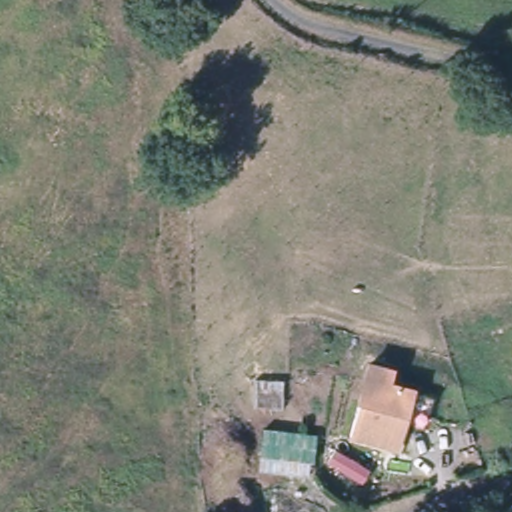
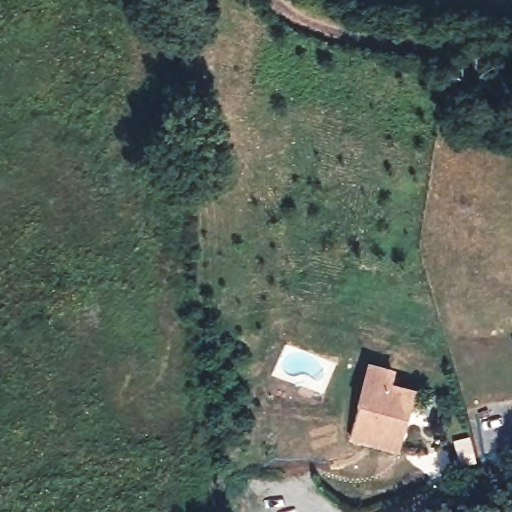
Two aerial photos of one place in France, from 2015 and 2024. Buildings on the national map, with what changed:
unchanged [(354,431),(371,375),(375,361),(397,368),(392,382),(409,388),(417,390),(411,410),(398,446),(354,431)]
unchanged [(284,408),(256,407),(256,379),(283,380),(284,408)]
unchanged [(315,463),(309,463),(308,475),(258,470),(262,428),(317,433),(315,463)]

